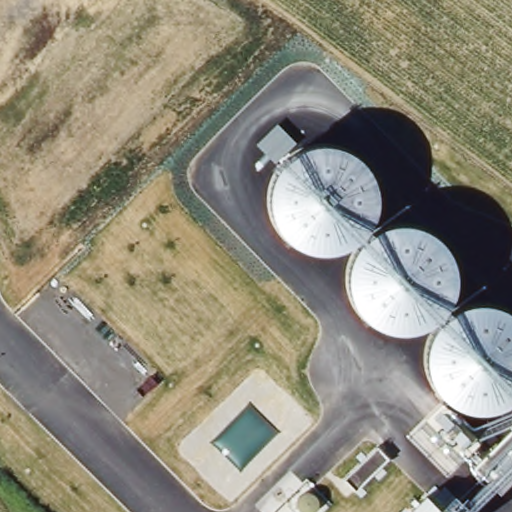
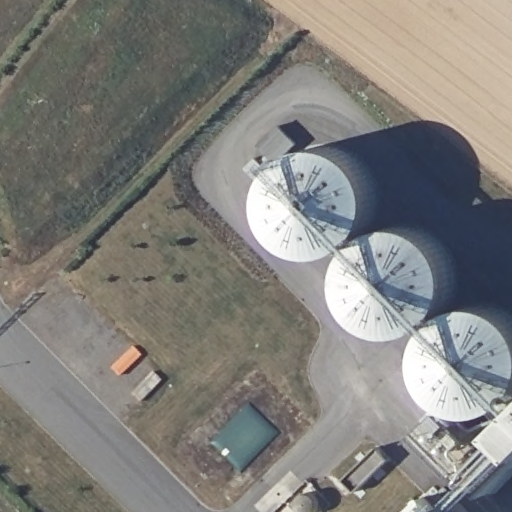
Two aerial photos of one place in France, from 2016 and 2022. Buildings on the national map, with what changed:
unchanged [(444,477),(407,438),(441,404),(479,441),(444,477)]
unchanged [(479,471),(512,433),(512,477),(497,492),(479,471)]
unchanged [(345,480),(377,448),(389,459),(355,491),(345,480)]
unchanged [(411,511),(426,496),(432,502),(438,507),(443,512),(413,512),(411,511)]

